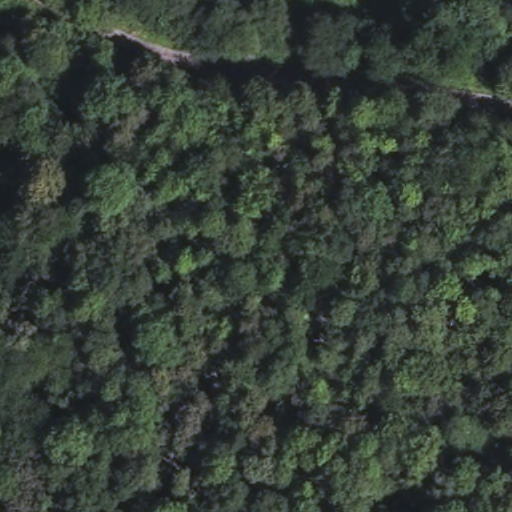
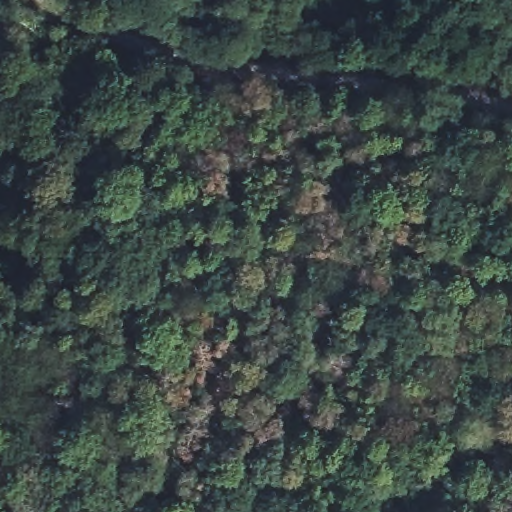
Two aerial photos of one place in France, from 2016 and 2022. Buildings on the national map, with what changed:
[]

